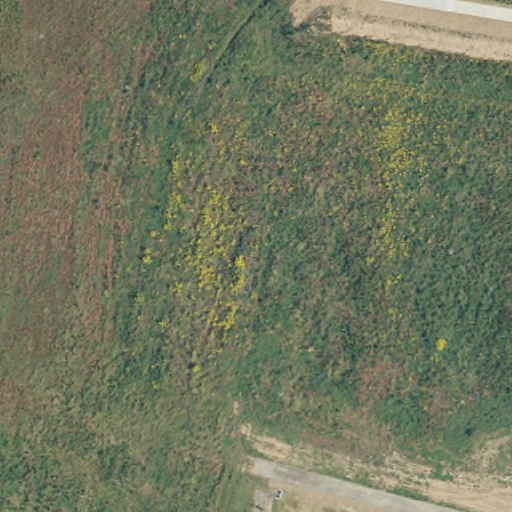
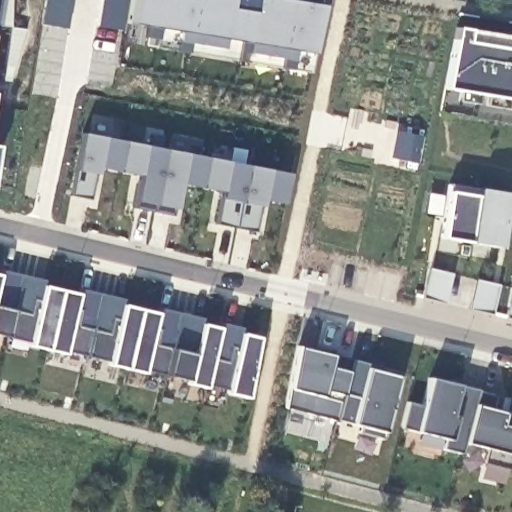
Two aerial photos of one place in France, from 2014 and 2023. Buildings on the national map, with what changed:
new [(456,27),(467,29),(512,36),(512,99),(445,88),(456,27)]
new [(283,204),(264,200),(262,206),(257,205),(255,229),(218,223),(222,198),(222,190),(180,182),(175,208),(135,201),(140,175),(99,167),(97,173),(94,172),(91,198),(72,194),(77,169),(84,133),(289,173),(283,204)]
new [(441,238),(448,192),(476,196),(478,189),(507,193),(498,247),(441,238)]
new [(0,338),(0,276),(256,338),(246,397),(0,338)]
new [(330,355),(351,360),(399,371),(397,377),(383,431),(381,439),(356,433),(357,425),(351,423),(334,420),(283,406),(288,389),(298,346),(330,355)]
new [(458,385),(477,390),(508,398),(506,401),(512,403),(512,453),(508,468),(482,462),(486,447),(465,443),(462,454),(442,449),(444,439),(417,432),(400,429),(406,402),(423,406),(429,379),(458,385)]

